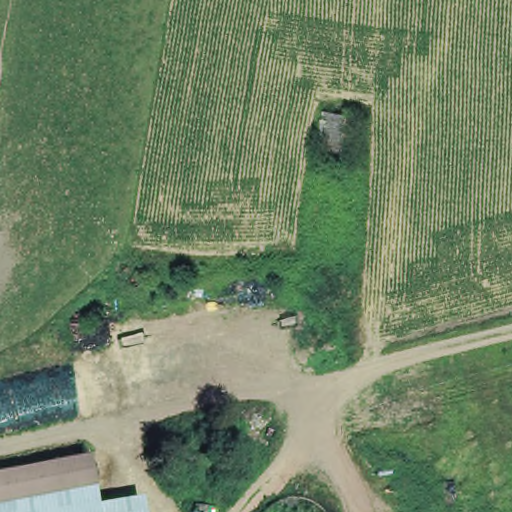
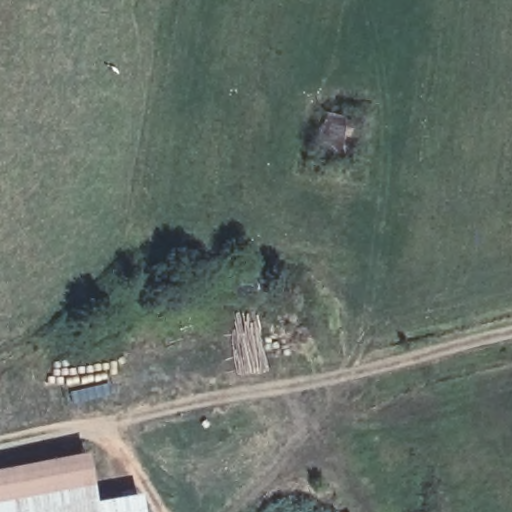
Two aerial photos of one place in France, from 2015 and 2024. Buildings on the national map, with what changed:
unchanged [(360,114),(355,157),(320,154),(327,114),(360,114)]
unchanged [(98,503),(141,496),(145,512),(0,512),(0,465),(88,447),(98,503)]

